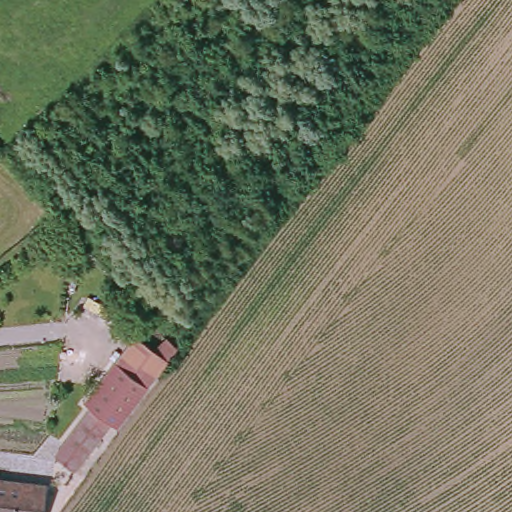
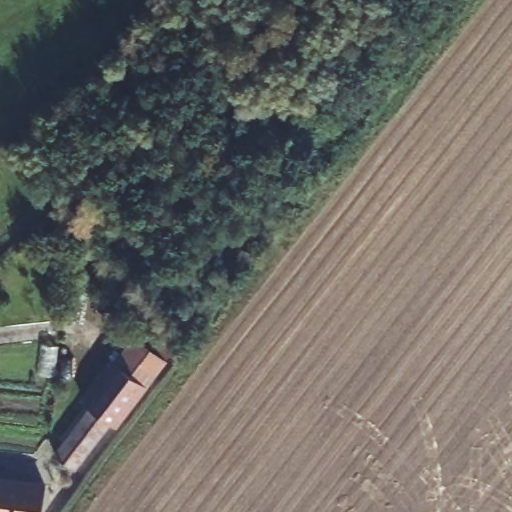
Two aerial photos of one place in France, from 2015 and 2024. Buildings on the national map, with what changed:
unchanged [(90,403),(86,400),(115,359),(137,331),(168,357),(114,425),(109,421),(75,468),(55,452),(90,403)]
unchanged [(0,512),(0,472),(46,477),(42,512),(0,512)]

